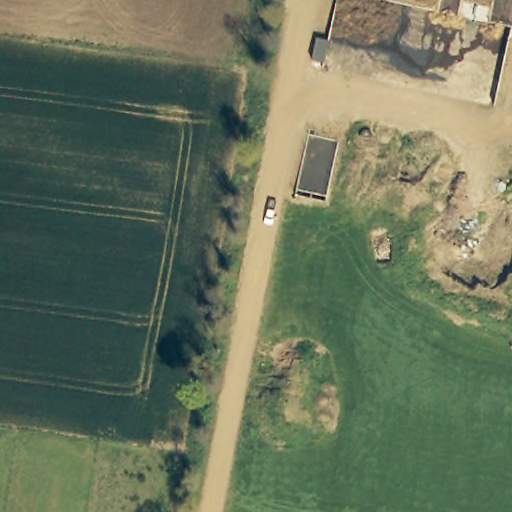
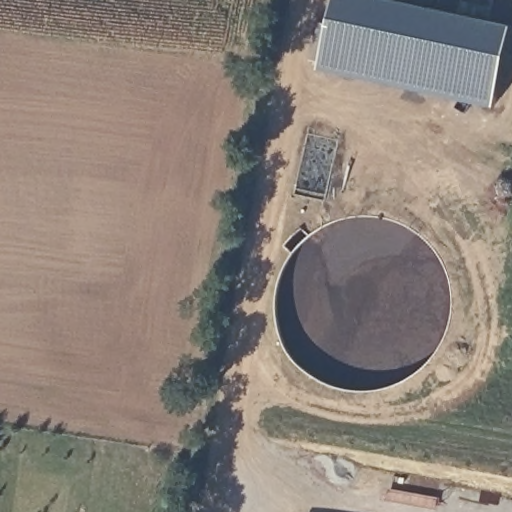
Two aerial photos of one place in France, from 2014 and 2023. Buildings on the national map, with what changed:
new [(334,0),(394,0),(510,25),(493,103),(319,67),(334,0)]

